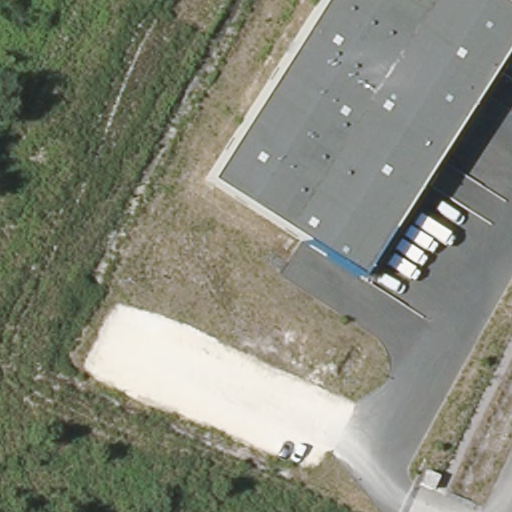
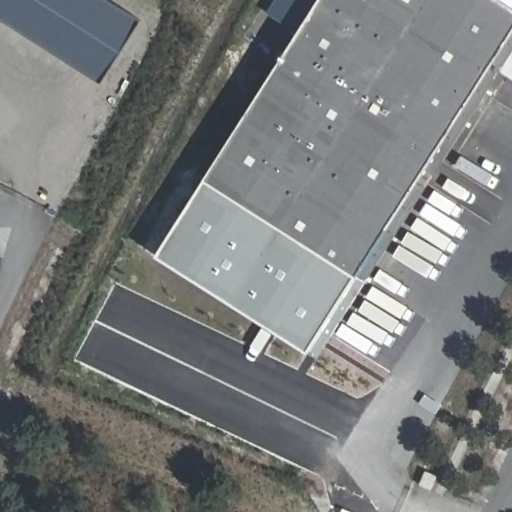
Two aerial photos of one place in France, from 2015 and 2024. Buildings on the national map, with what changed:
new [(0,0),(107,0),(140,21),(102,82),(0,17),(0,0)]
unchanged [(206,182),(322,0),(500,0),(512,8),(512,36),(360,278),(206,182)]
new [(322,0),(300,35),(266,14),(275,0),(322,0)]
new [(500,0),(512,0),(512,8),(500,0)]
new [(512,53),(512,79),(500,71),(512,53)]
new [(360,278),(307,353),(157,256),(206,182),(360,278)]

